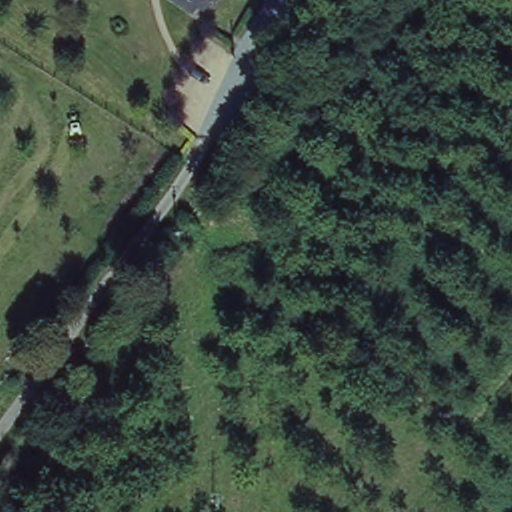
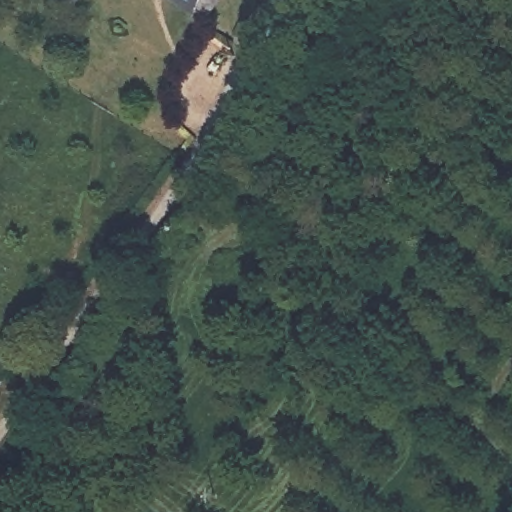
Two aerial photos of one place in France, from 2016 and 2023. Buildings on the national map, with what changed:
unchanged [(194,0),(196,0),(195,1),(194,0)]
unchanged [(302,0),(311,0),(307,5),(302,0)]

